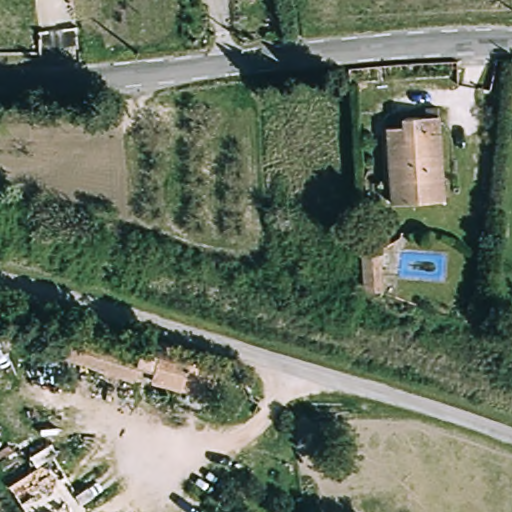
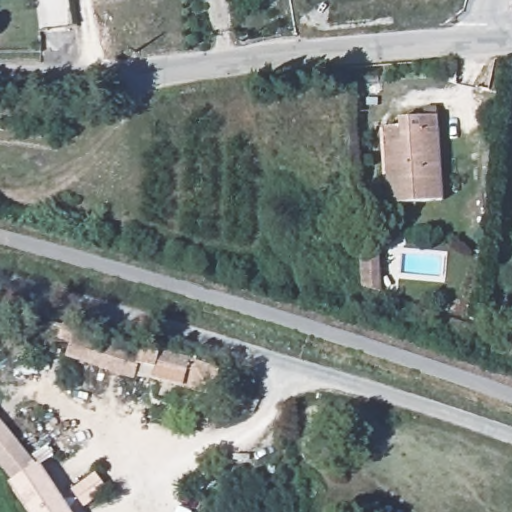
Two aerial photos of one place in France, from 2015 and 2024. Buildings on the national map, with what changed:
unchanged [(442,121),(445,199),(389,201),(387,141),(405,142),(405,121),(442,121)]
unchanged [(360,249),(386,252),(385,288),(363,288),(360,249)]
unchanged [(0,343),(0,321),(11,315),(21,333),(0,343)]
unchanged [(137,345),(129,376),(71,359),(74,350),(53,345),(54,340),(59,323),(82,330),(137,345)]
unchanged [(219,365),(213,396),(151,383),(157,351),(219,365)]
new [(36,469),(16,485),(0,464),(0,423),(36,469)]
new [(51,466),(67,491),(52,500),(59,512),(24,512),(11,491),(51,466)]

